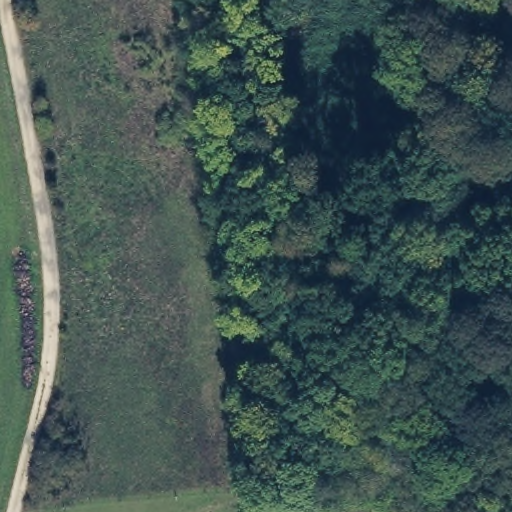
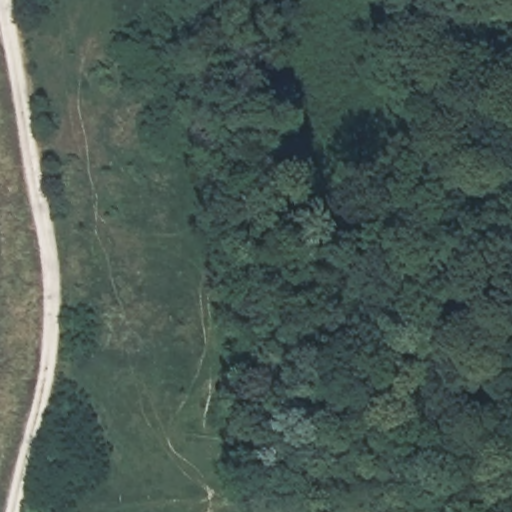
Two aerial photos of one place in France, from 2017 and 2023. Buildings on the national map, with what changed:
unchanged [(420,501),(420,512),(392,512),(392,501),(420,501)]

